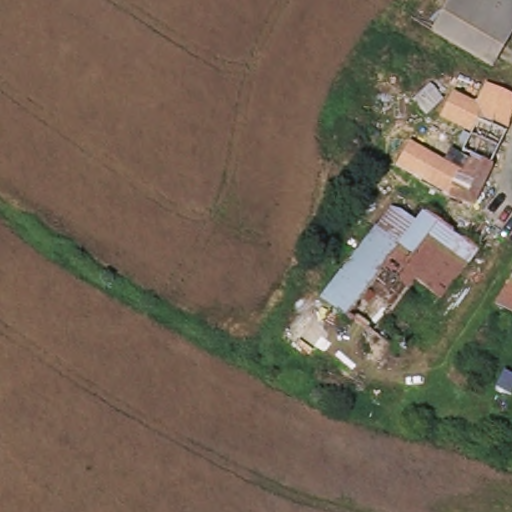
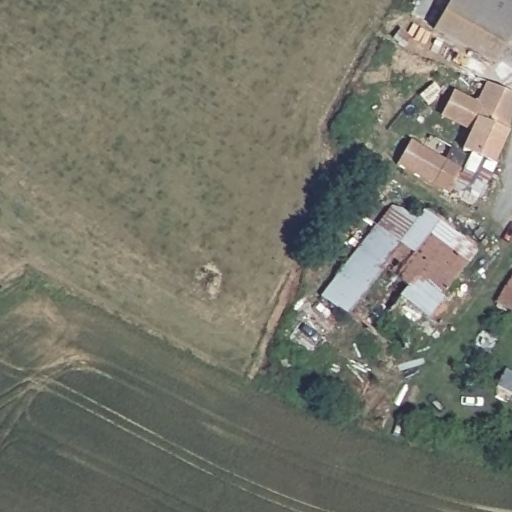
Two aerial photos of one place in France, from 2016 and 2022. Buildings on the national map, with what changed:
unchanged [(492,61),(432,26),(446,0),(512,0),(512,28),(492,61)]
unchanged [(507,132),(472,207),(394,166),(406,142),(462,167),(467,153),(462,151),(469,133),(441,118),(452,91),(478,101),(488,83),(512,93),(512,109),(507,132)]
unchanged [(391,255),(350,308),(326,288),(394,201),(420,219),(391,255)]
unchanged [(432,202),(482,240),(442,295),(391,255),(420,219),(432,202)]
unchanged [(497,298),(512,273),(512,306),(497,298)]

